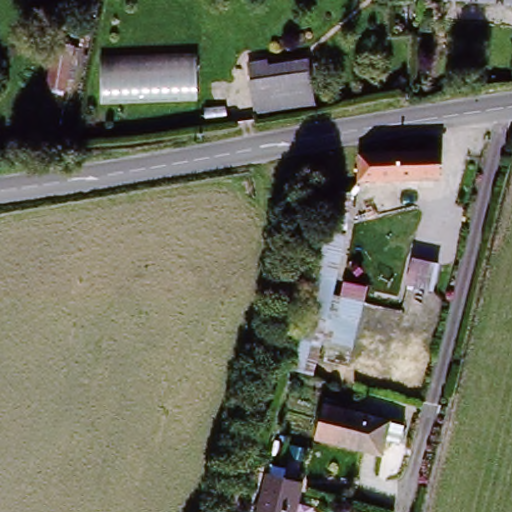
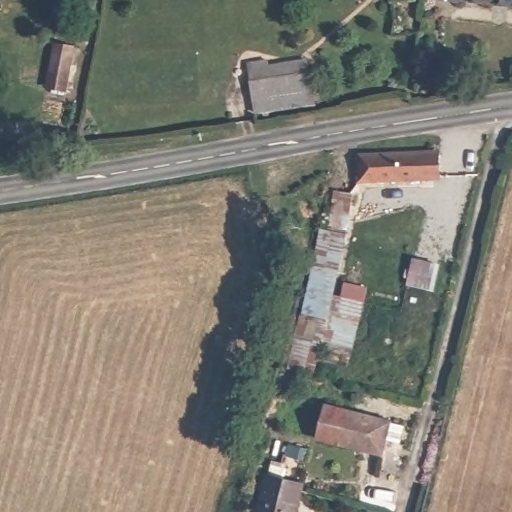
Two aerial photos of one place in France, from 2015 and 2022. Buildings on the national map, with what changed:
unchanged [(389,1),(389,0),(414,0),(413,5),(389,1)]
unchanged [(461,4),(461,0),(512,0),(512,11),(461,4)]
unchanged [(48,46),(76,52),(67,97),(38,91),(48,46)]
demolished [(199,100),(99,101),(99,56),(197,53),(199,100)]
unchanged [(314,104),(258,114),(254,85),(309,75),(314,104)]
unchanged [(439,149),(440,172),(365,174),(364,150),(439,149)]
unchanged [(289,370),(317,251),(327,200),(352,201),(343,259),(336,295),(318,375),(289,370)]
unchanged [(441,265),(435,293),(407,287),(413,258),(441,265)]
unchanged [(366,302),(342,380),(318,375),(336,295),(366,302)]
unchanged [(401,443),(388,440),(382,457),(320,436),(330,404),(394,423),(406,426),(401,443)]
unchanged [(301,482),(293,512),(258,512),(267,474),(301,482)]

